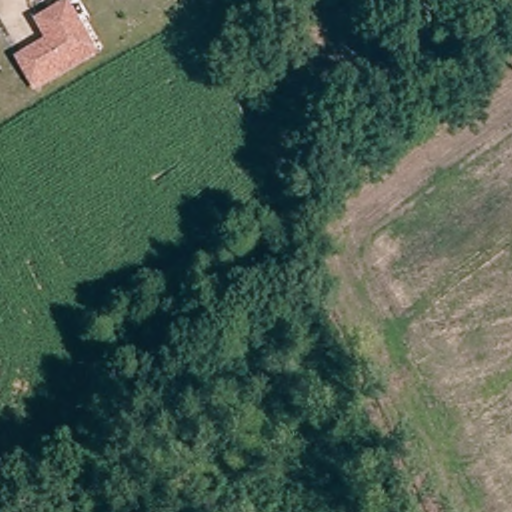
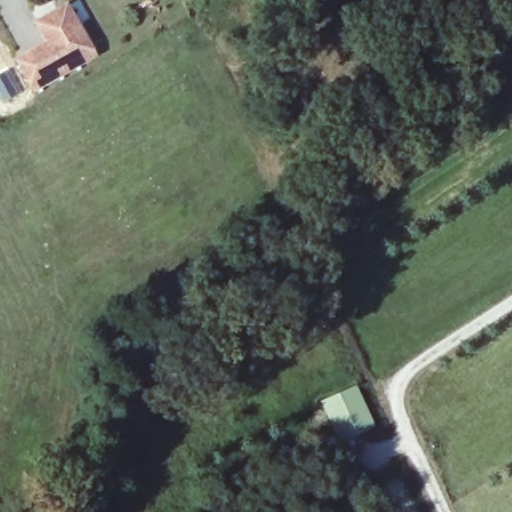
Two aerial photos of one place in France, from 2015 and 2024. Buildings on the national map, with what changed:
unchanged [(66,3),(98,56),(33,94),(13,58),(42,42),(32,21),(66,3)]
new [(356,385),(376,427),(339,443),(320,401),(356,385)]

